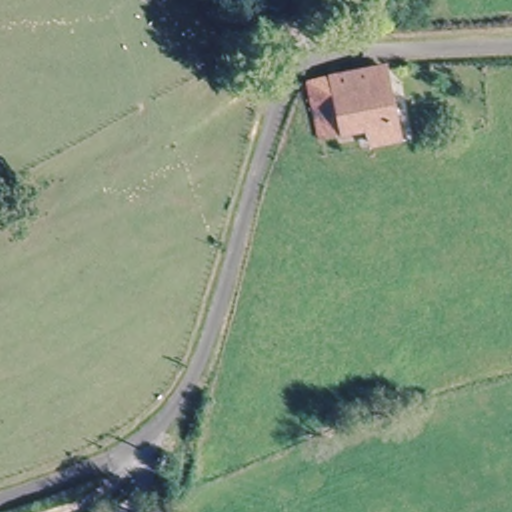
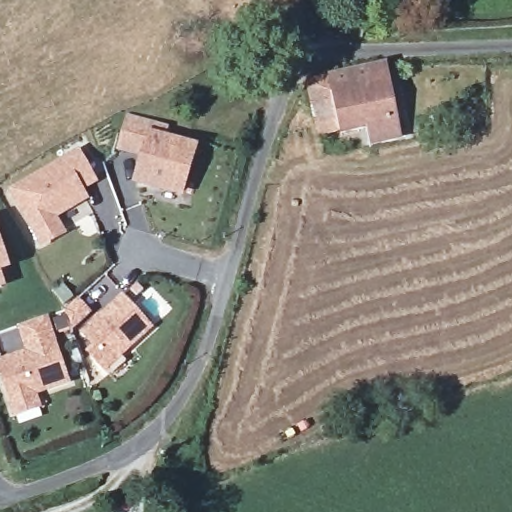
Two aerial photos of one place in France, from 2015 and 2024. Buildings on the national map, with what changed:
unchanged [(395,136),(377,141),(374,127),(347,134),(333,75),(379,67),(395,136)]
unchanged [(347,134),(325,139),(309,79),(333,75),(347,134)]
new [(131,185),(138,158),(114,152),(125,116),(169,128),(167,137),(198,146),(181,200),(131,185)]
new [(99,184),(85,192),(91,202),(58,219),(66,237),(39,252),(6,191),(79,150),(99,184)]
new [(11,271),(0,275),(5,290),(0,291),(0,240),(11,271)]
new [(104,374),(84,354),(92,347),(79,333),(121,295),(153,330),(104,374)]
new [(0,379),(0,359),(55,341),(70,386),(37,397),(42,412),(13,419),(0,379)]

